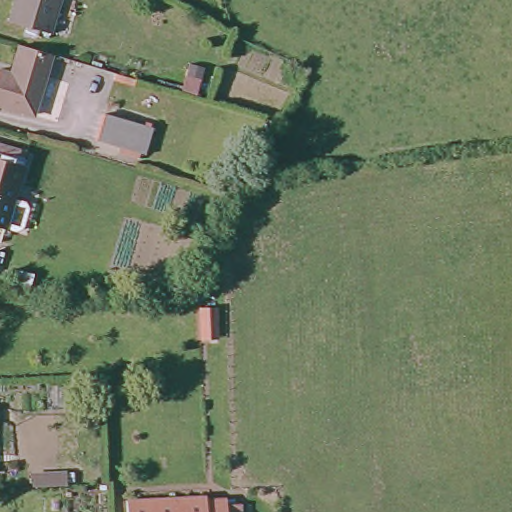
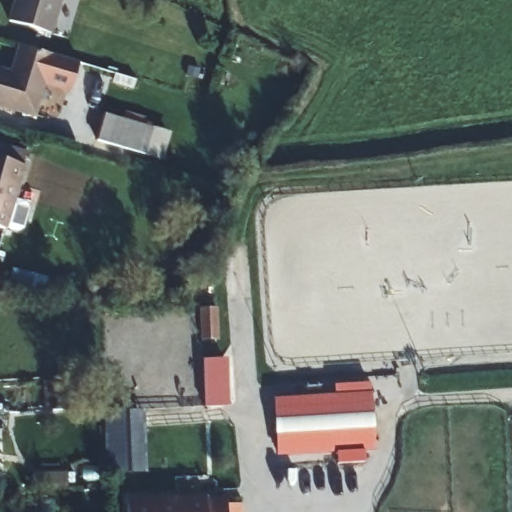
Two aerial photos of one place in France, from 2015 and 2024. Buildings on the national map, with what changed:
unchanged [(7,21),(12,0),(58,0),(49,34),(7,21)]
unchanged [(0,71),(9,74),(18,45),(50,55),(77,63),(69,89),(42,81),(32,115),(0,105),(0,71)]
new [(204,67),(201,78),(187,74),(190,64),(204,67)]
unchanged [(96,140),(104,113),(152,128),(144,155),(96,140)]
unchanged [(7,219),(0,217),(0,145),(27,153),(7,219)]
unchanged [(215,304),(215,335),(200,335),(200,305),(215,304)]
new [(204,360),(227,360),(230,406),(205,407),(204,360)]
new [(333,385),(371,383),(375,451),(366,451),(366,462),(336,464),(335,453),(276,457),(272,398),(334,394),(333,385)]
new [(105,413),(145,411),(147,472),(107,471),(105,413)]
unchanged [(207,498),(226,497),(226,512),(129,512),(128,498),(207,498)]

